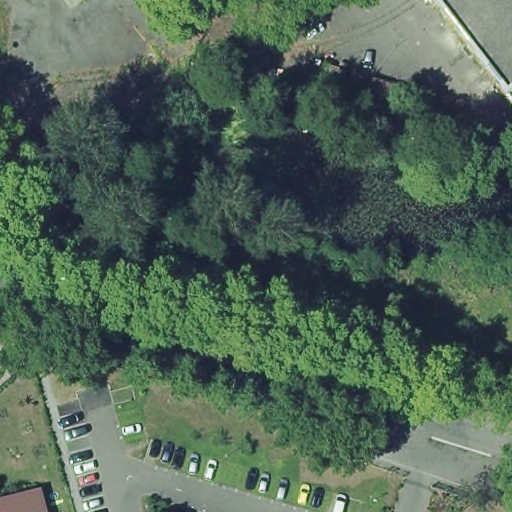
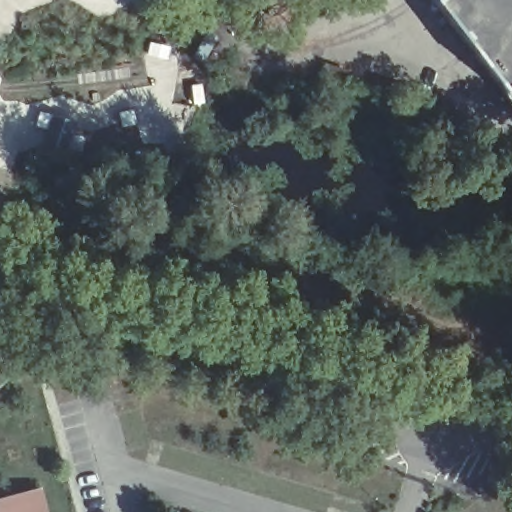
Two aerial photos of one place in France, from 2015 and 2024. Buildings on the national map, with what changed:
unchanged [(436,0),(512,0),(512,99),(436,0)]
unchanged [(72,126),(64,151),(45,145),(52,120),(72,126)]
unchanged [(48,512),(0,512),(0,498),(40,486),(48,512)]

